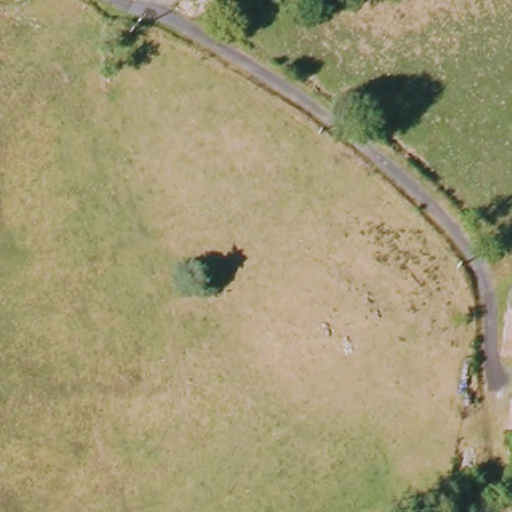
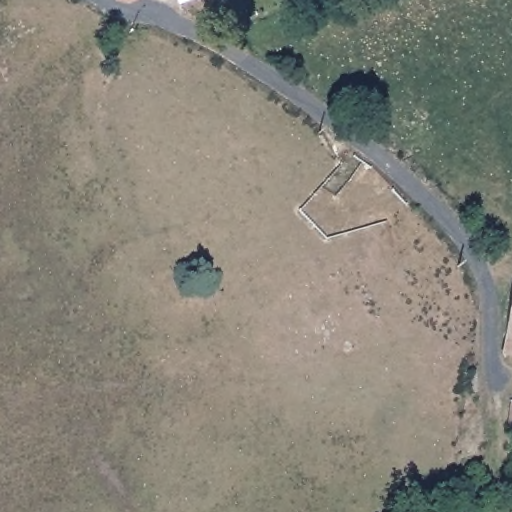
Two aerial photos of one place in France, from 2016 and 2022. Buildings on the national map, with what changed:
unchanged [(511,280),(512,281),(512,351),(502,349),(502,314),(511,280)]
unchanged [(509,400),(512,400),(512,425),(508,424),(509,400)]

